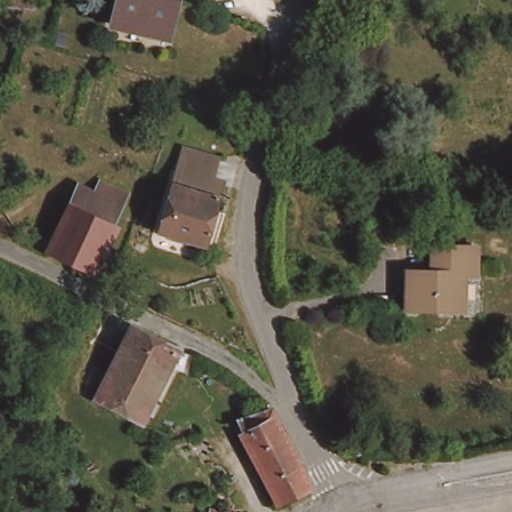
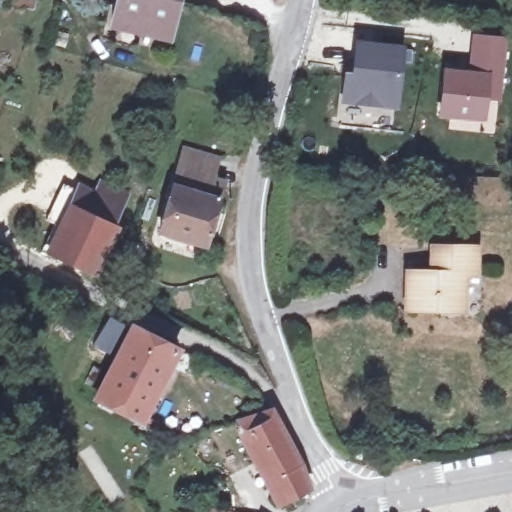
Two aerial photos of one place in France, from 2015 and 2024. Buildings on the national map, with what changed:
unchanged [(113,19),(118,0),(178,0),(168,35),(113,19)]
new [(442,69),(467,70),(472,34),(508,37),(501,99),(498,120),(485,120),(485,123),(438,119),(442,69)]
new [(354,80),(355,72),(356,47),(401,52),(396,110),(344,106),(346,79),(358,80),(354,80)]
unchanged [(190,151),(221,162),(213,187),(225,190),(221,205),(198,196),(200,192),(194,190),(192,195),(178,190),(190,151)]
unchanged [(48,259),(75,200),(96,208),(105,190),(123,198),(116,214),(120,215),(92,278),(48,259)]
unchanged [(207,250),(163,235),(178,190),(192,195),(194,190),(200,192),(198,196),(221,205),(207,250)]
unchanged [(441,312),(410,310),(410,272),(435,274),(436,260),(436,250),(481,250),(480,267),(480,275),(467,275),(466,305),(465,313),(441,312)]
unchanged [(102,401),(120,364),(135,330),(177,350),(182,351),(199,357),(191,372),(175,365),(146,422),(102,401)]
unchanged [(268,416),(285,443),(300,469),(309,491),(281,501),(238,425),(268,416)]
unchanged [(209,509),(225,512),(208,512),(209,509)]

